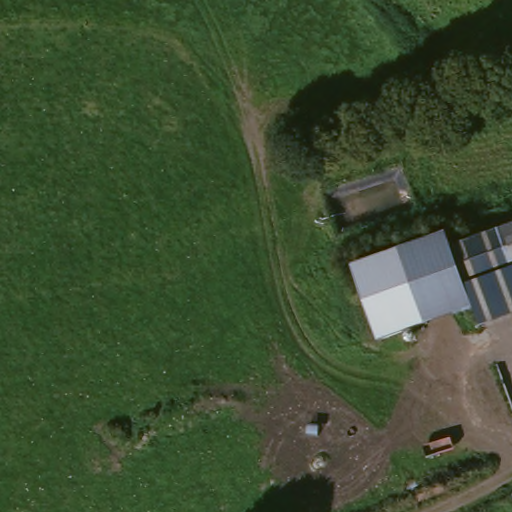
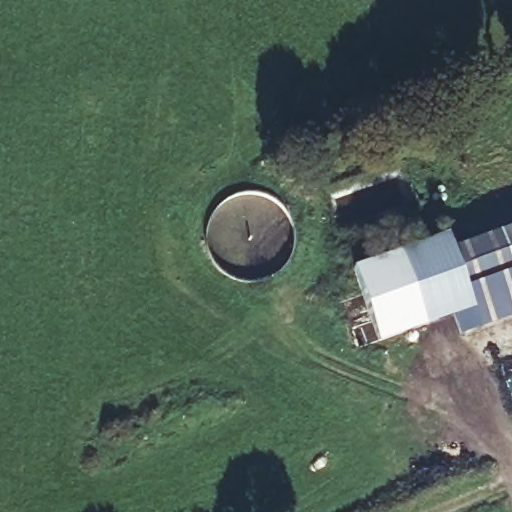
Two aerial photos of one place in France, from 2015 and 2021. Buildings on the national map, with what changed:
unchanged [(458,252),(512,232),(512,323),(487,332),(479,313),(469,283),(458,252)]
unchanged [(386,348),(360,277),(454,243),(458,252),(469,283),(479,313),(386,348)]

